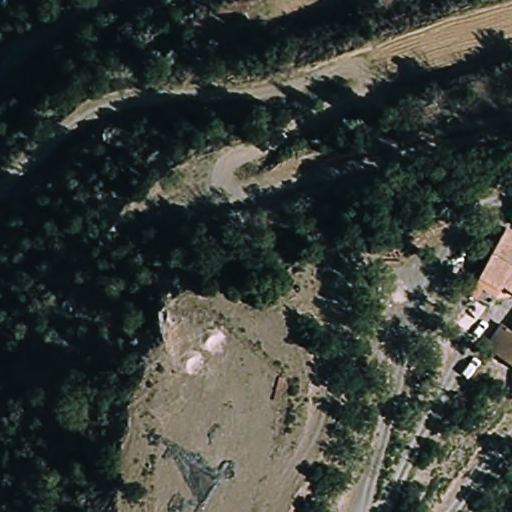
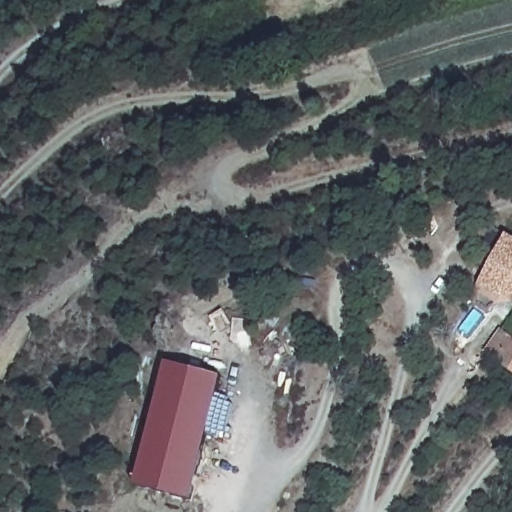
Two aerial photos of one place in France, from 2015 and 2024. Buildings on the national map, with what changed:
unchanged [(512,304),(505,299),(495,311),(475,299),(482,289),(512,235),(512,304)]
unchanged [(507,324),(512,328),(512,369),(490,348),(507,324)]
new [(194,500),(139,488),(168,364),(223,378),(194,500)]

